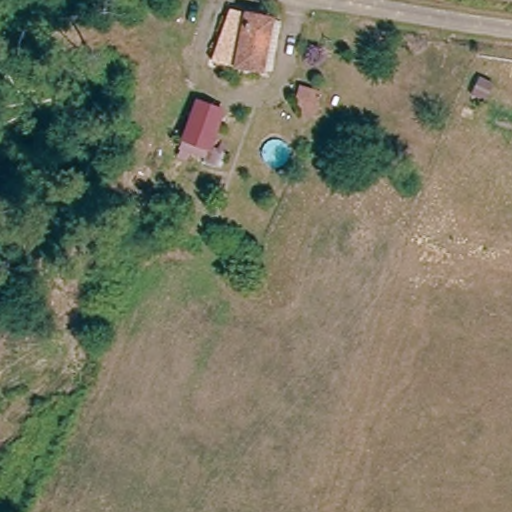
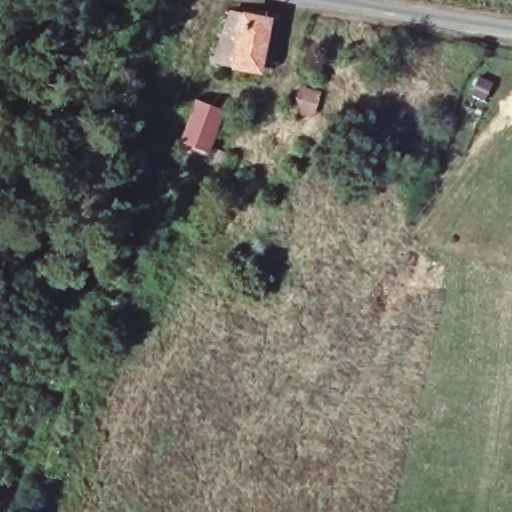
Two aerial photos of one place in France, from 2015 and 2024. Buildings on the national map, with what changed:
unchanged [(254,66),(230,61),(214,57),(223,9),(263,16),(276,18),(267,69),(254,66)]
unchanged [(181,150),(185,137),(199,98),(224,107),(209,145),(204,158),(181,150)]

